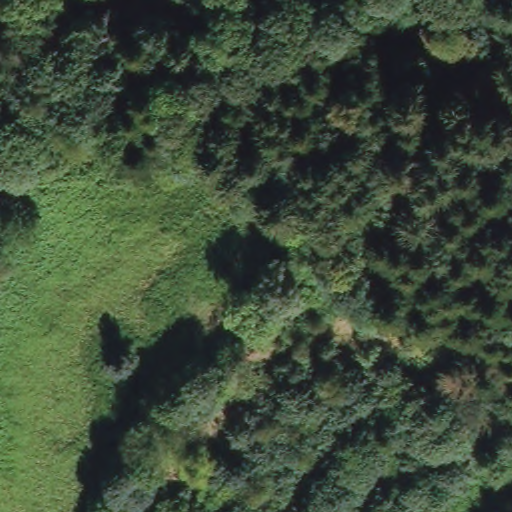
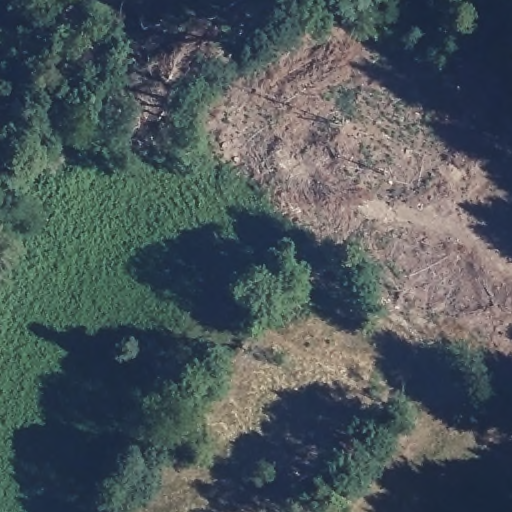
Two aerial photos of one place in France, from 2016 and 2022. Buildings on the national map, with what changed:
unchanged [(159,0),(193,0),(197,13),(136,31),(129,9),(159,0)]

